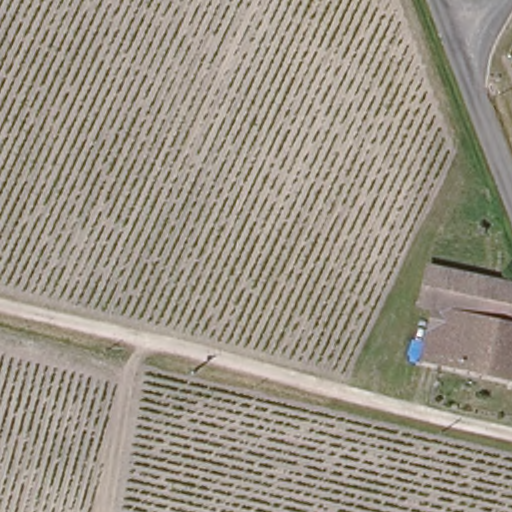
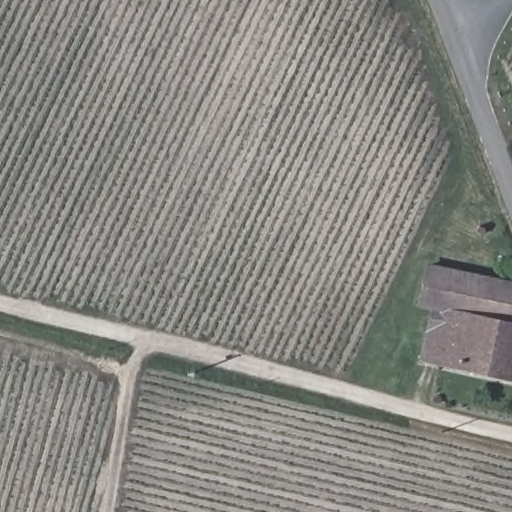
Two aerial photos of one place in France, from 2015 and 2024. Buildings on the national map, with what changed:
unchanged [(512,284),(512,381),(422,362),(432,319),(423,317),(433,267),(512,284)]

